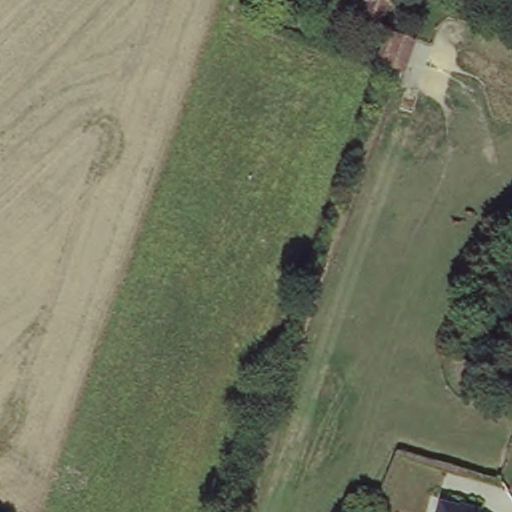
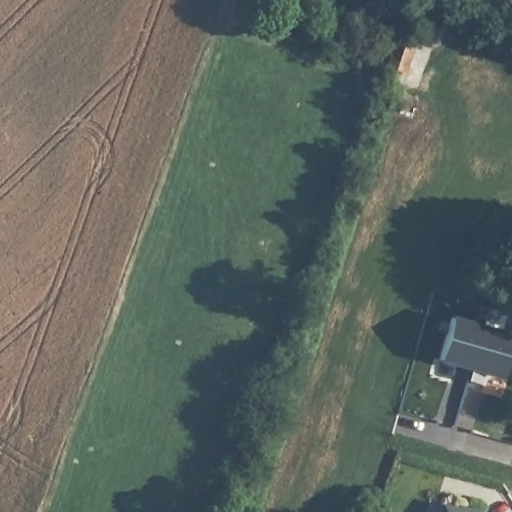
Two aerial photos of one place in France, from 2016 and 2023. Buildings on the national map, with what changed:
unchanged [(387,22),(354,11),(358,0),(396,0),(387,22)]
unchanged [(373,63),(383,30),(417,41),(407,71),(373,63)]
new [(512,349),(505,378),(441,360),(453,319),(512,335),(512,349)]
unchanged [(477,509),(477,512),(433,512),(437,498),(477,509)]

